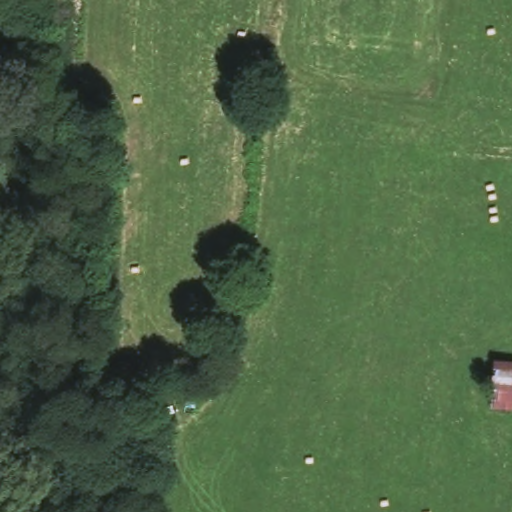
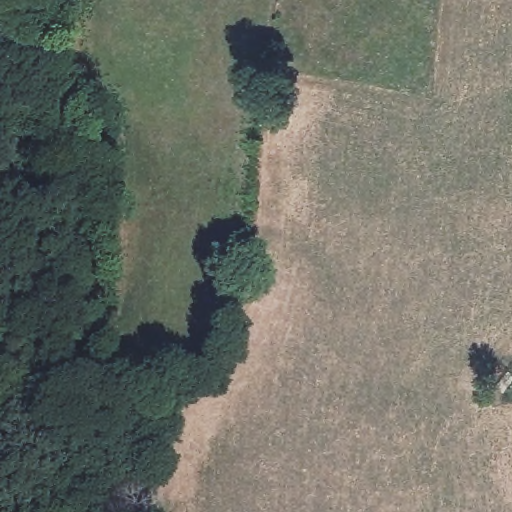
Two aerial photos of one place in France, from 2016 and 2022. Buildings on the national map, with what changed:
unchanged [(491,352),(512,354),(512,405),(485,402),(491,352)]

